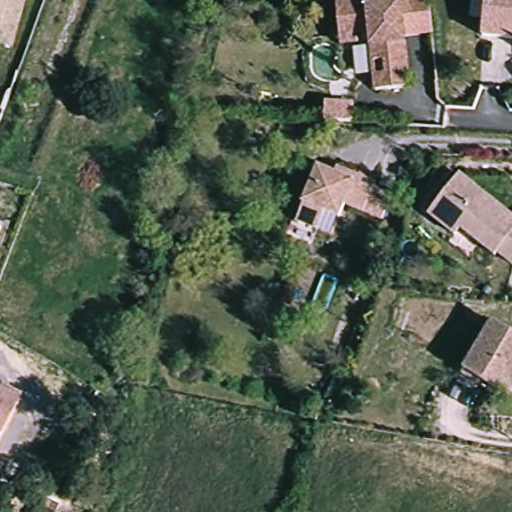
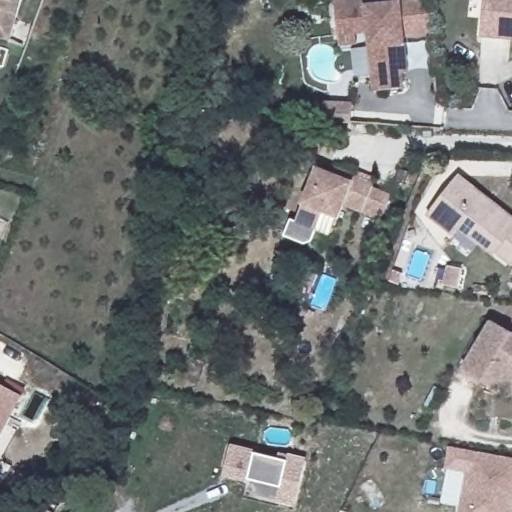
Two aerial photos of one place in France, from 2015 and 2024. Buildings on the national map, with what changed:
unchanged [(0,37),(0,0),(22,0),(17,15),(10,39),(0,37)]
unchanged [(398,74),(397,89),(369,89),(369,72),(381,72),(381,59),(369,59),(370,28),(340,27),(341,0),(372,0),(372,3),(404,3),(428,4),(431,33),(402,32),(402,74),(398,74)]
unchanged [(487,0),(512,0),(512,40),(484,37),(487,0)]
unchanged [(345,112),(316,111),(317,93),(346,95),(345,112)]
unchanged [(310,231),(290,223),(315,167),(329,173),(333,163),(352,171),(370,179),(368,185),(386,193),(375,217),(357,209),(340,201),(333,218),(324,237),(310,231)]
unchanged [(512,219),(512,254),(505,263),(492,252),(489,255),(458,230),(453,236),(427,215),(432,209),(459,175),(512,219)]
unchanged [(488,319),(512,332),(512,373),(502,368),(489,393),(458,376),(488,319)]
unchanged [(512,373),(512,390),(511,389),(505,401),(489,393),(502,368),(512,373)]
unchanged [(20,395),(0,432),(0,384),(20,395)]
new [(512,512),(462,512),(470,467),(448,463),(452,441),(512,452),(512,512)]
new [(256,454),(277,458),(279,452),(306,457),(295,507),(276,502),(281,488),(250,481),(249,484),(222,477),(230,445),(256,450),(256,454)]

